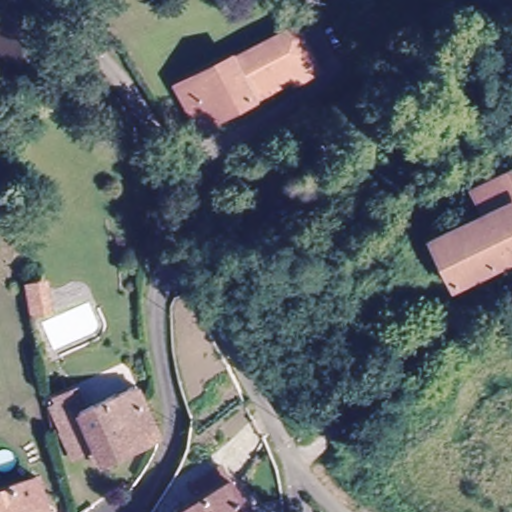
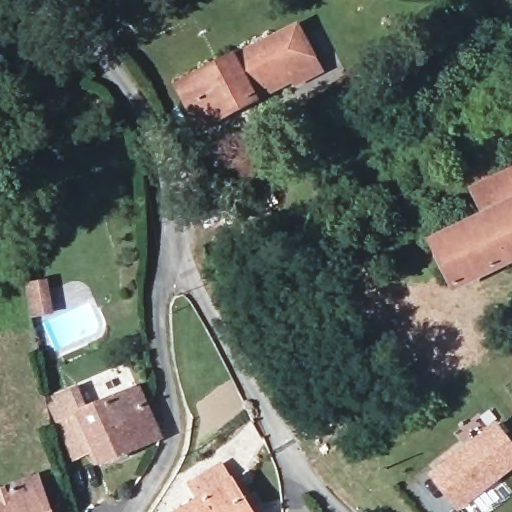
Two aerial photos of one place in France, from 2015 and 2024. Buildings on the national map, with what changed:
unchanged [(251,44),(252,47),(292,27),(314,70),(301,77),(298,73),(216,116),(205,122),(182,78),(194,73),(251,44)]
unchanged [(428,240),(481,214),(467,187),(461,174),(504,152),(511,167),(512,166),(512,258),(452,288),(428,240)]
unchanged [(98,325),(52,345),(40,317),(86,297),(98,325)]
unchanged [(371,328),(387,356),(367,367),(352,338),(371,328)]
unchanged [(104,467),(97,454),(81,461),(69,432),(76,429),(65,403),(79,396),(87,412),(141,389),(164,439),(104,467)]
new [(497,422),(512,440),(512,471),(460,512),(430,473),(497,422)]
unchanged [(187,482),(217,463),(249,512),(173,512),(197,497),(187,482)]
unchanged [(41,475),(53,512),(0,512),(0,487),(41,475)]

